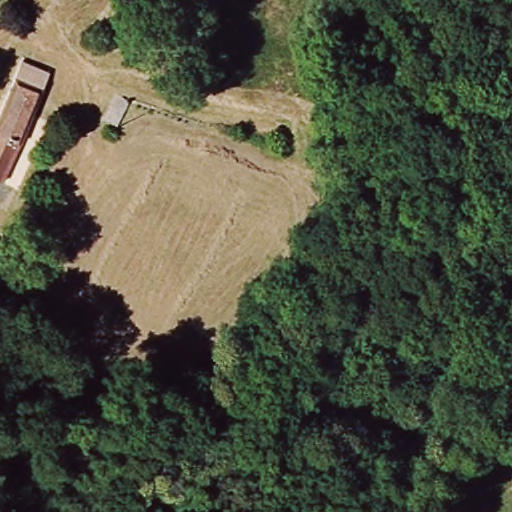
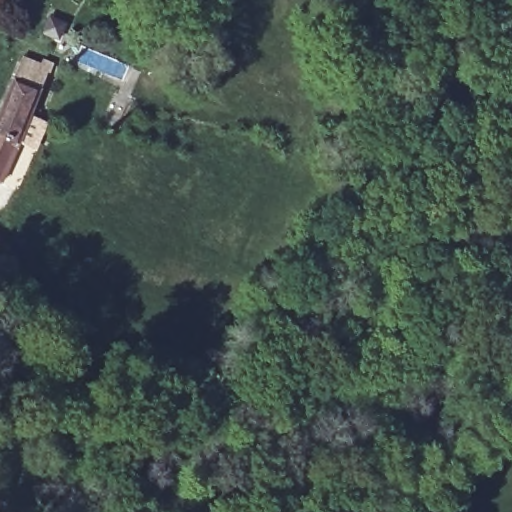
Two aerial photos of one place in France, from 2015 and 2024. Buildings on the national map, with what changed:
unchanged [(51,79),(0,182),(0,110),(23,65),(51,79)]

